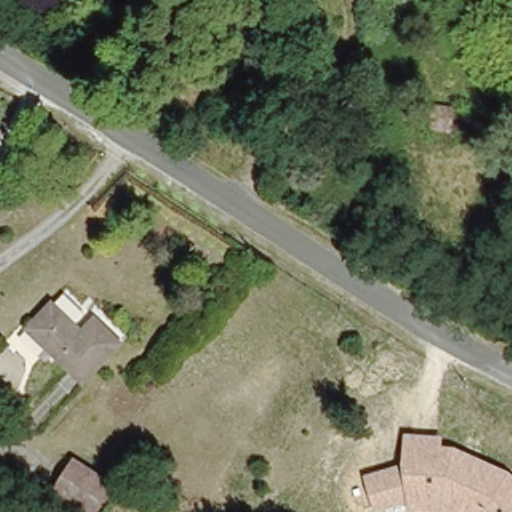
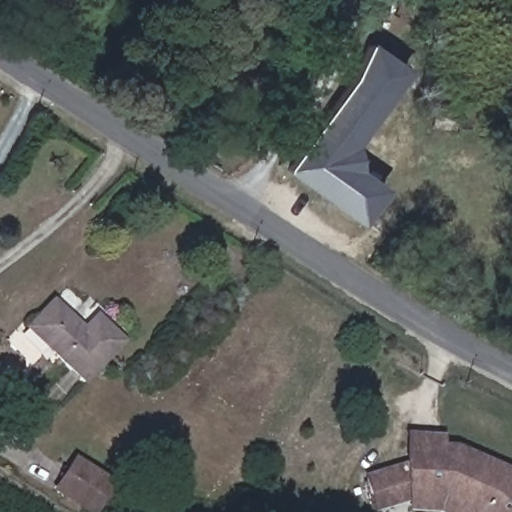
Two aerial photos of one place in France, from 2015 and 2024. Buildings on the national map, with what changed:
new [(356,81),(372,47),(409,75),(357,145),(361,174),(387,192),(364,224),(291,170),(356,81)]
unchanged [(84,326),(97,314),(125,340),(81,378),(28,322),(54,298),(84,326)]
unchanged [(410,504),(381,512),(377,512),(365,476),(405,464),(407,434),(445,435),(445,444),(458,446),(510,470),(512,472),(512,512),(412,512),(410,504)]
unchanged [(115,481),(95,512),(89,512),(54,488),(72,456),(115,481)]

